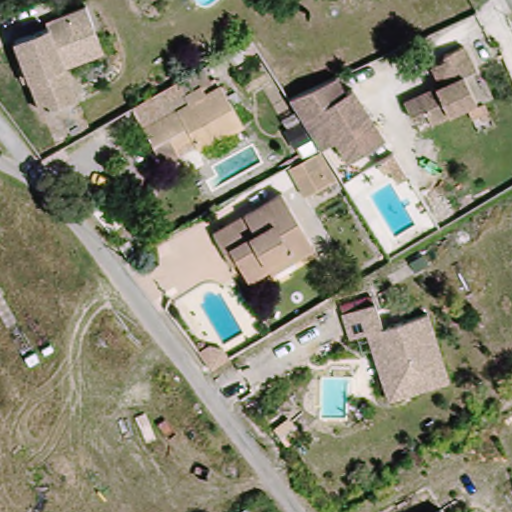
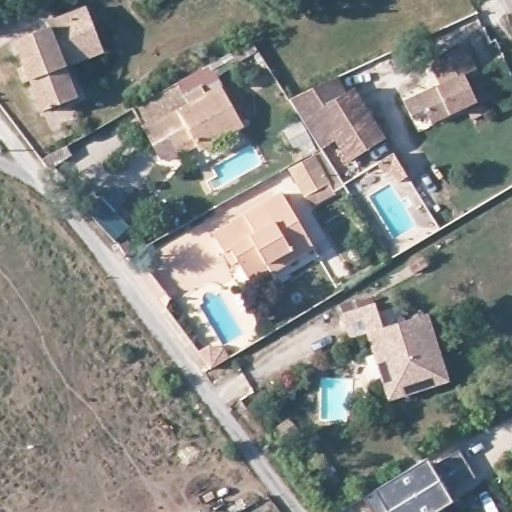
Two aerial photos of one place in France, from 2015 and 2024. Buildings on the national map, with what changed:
unchanged [(39,112),(14,44),(48,29),(46,22),(86,8),(93,28),(102,55),(64,68),(76,99),(39,112)]
unchanged [(475,70),(462,75),(475,101),(439,119),(433,109),(419,116),(411,100),(440,87),(430,66),(445,60),(442,55),(462,46),(475,70)]
unchanged [(154,157),(145,141),(133,120),(183,93),(179,88),(203,75),(206,80),(200,84),(207,96),(223,88),(249,136),(202,159),(197,147),(175,159),(169,150),(154,157)]
unchanged [(352,92),(360,89),(385,141),(348,160),(337,137),(321,145),(293,100),(298,97),(344,76),(352,92)]
unchanged [(292,169),(317,155),(324,151),(342,178),(334,183),(310,197),(292,169)]
unchanged [(268,280),(263,272),(242,285),(222,253),(216,257),(206,240),(275,198),(310,254),(290,265),(291,268),(268,280)]
unchanged [(388,387),(371,336),(354,342),(346,318),(378,307),(386,332),(430,318),(452,385),(419,395),(393,404),(388,387)]
new [(376,512),(367,495),(427,458),(432,466),(459,450),(475,477),(448,494),(452,500),(437,508),(431,512),(376,512)]
unchanged [(431,512),(437,508),(440,512),(431,512)]

